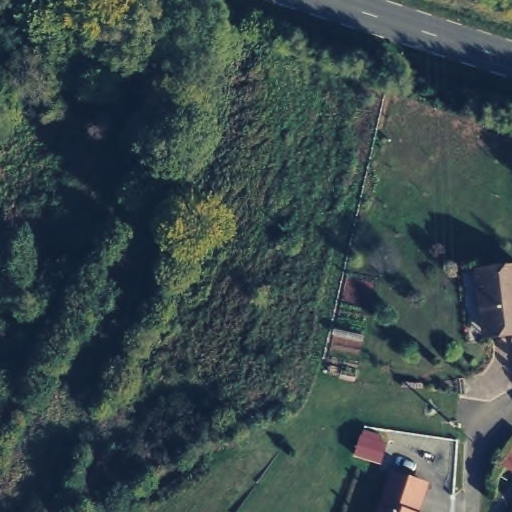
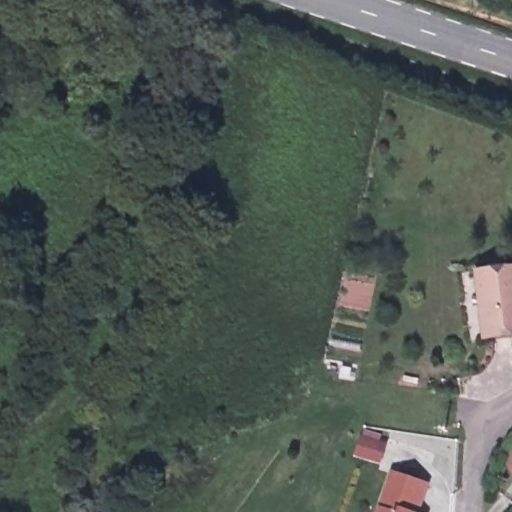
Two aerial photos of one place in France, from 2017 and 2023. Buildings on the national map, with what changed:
unchanged [(485,307),(482,283),(481,265),(485,265),(512,263),(512,328),(493,330),(485,331),(485,307)]
unchanged [(502,465),(512,449),(512,472),(502,465)]
unchanged [(425,490),(417,512),(380,512),(391,479),(404,483),(425,490)]
unchanged [(512,482),(512,498),(504,494),(510,481),(512,482)]

